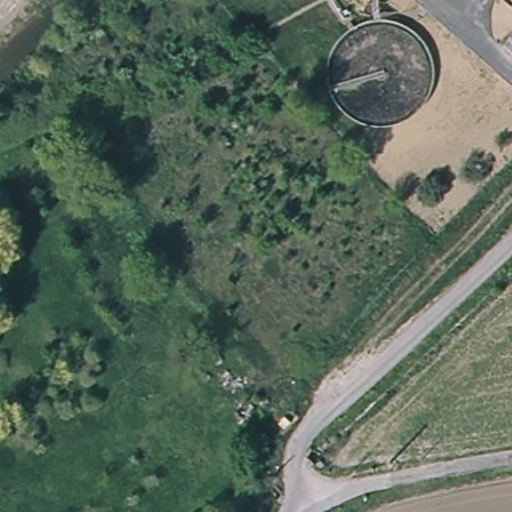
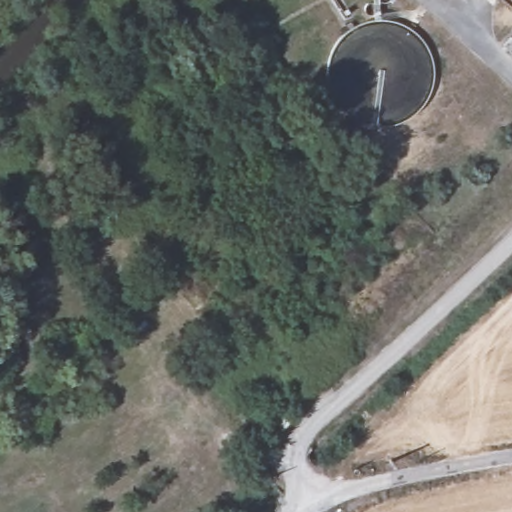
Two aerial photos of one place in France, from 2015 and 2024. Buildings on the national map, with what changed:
unchanged [(504,0),(512,0),(512,6),(504,0)]

